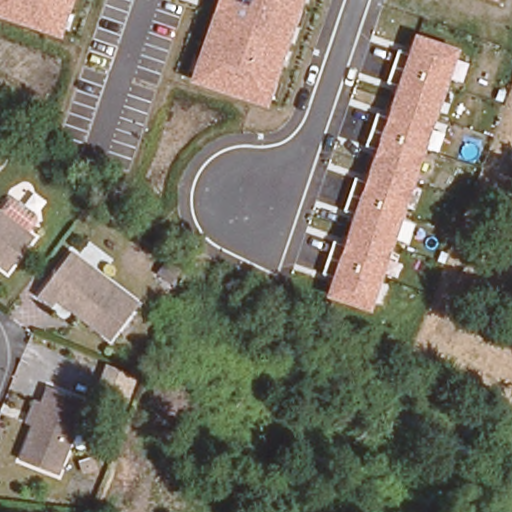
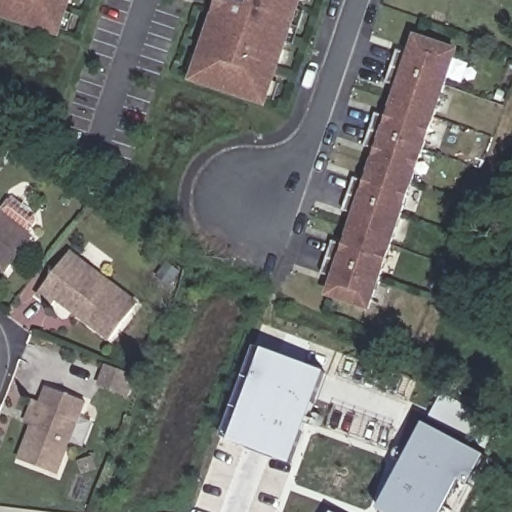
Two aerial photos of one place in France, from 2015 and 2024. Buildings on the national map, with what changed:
unchanged [(61,39),(0,17),(0,0),(75,0),(61,39)]
unchanged [(190,82),(217,0),(305,0),(268,107),(190,82)]
unchanged [(493,0),(498,0),(497,1),(493,0)]
unchanged [(372,311),(327,296),(333,277),(324,273),(334,241),(345,244),(354,214),(345,210),(355,178),(367,180),(377,150),(367,146),(378,113),(388,116),(398,85),(389,82),(399,50),(409,54),(415,35),(460,49),(372,311)]
unchanged [(32,243),(6,277),(0,273),(0,218),(32,243)]
unchanged [(70,254),(142,308),(114,345),(58,302),(53,308),(38,297),(70,254)]
new [(263,350),(326,373),(292,465),(229,442),(263,350)]
unchanged [(123,374),(135,378),(128,399),(97,388),(105,367),(123,374)]
new [(444,394),(499,422),(484,455),(426,425),(444,394)]
unchanged [(59,478),(20,466),(30,434),(24,432),(30,409),(37,411),(42,395),(81,407),(59,478)]
new [(484,455),(489,458),(461,512),(384,512),(381,510),(426,425),(484,455)]

